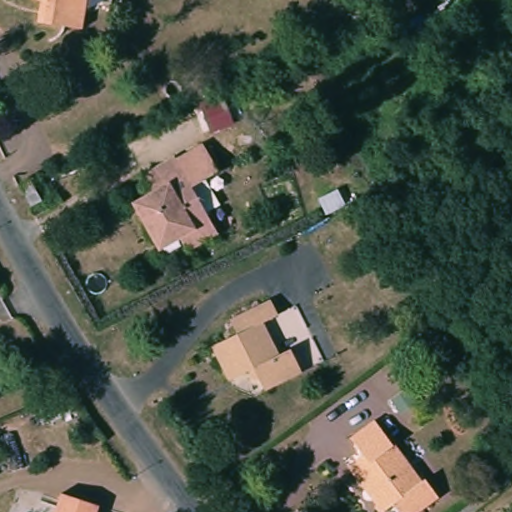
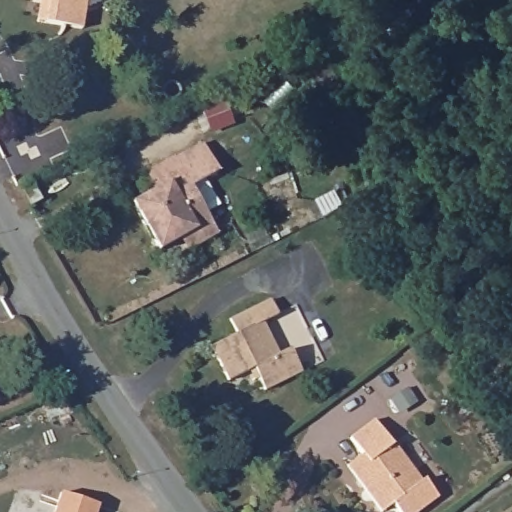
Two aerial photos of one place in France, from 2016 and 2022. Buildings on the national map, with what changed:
unchanged [(84,26),(39,21),(40,0),(87,0),(84,26)]
unchanged [(180,240),(160,251),(133,200),(152,190),(144,175),(151,170),(176,157),(179,161),(205,145),(220,175),(192,189),(216,236),(202,244),(187,252),(180,240)]
unchanged [(237,335),(230,318),(269,300),(277,314),(265,320),(281,353),(292,348),(305,369),(265,390),(254,368),(231,378),(215,347),(237,335)]
unchanged [(426,478),(440,495),(418,512),(402,512),(393,502),(382,511),(345,465),(360,454),(348,435),(374,417),(423,481),(426,478)]
unchanged [(96,512),(55,512),(57,495),(97,501),(96,512)]

